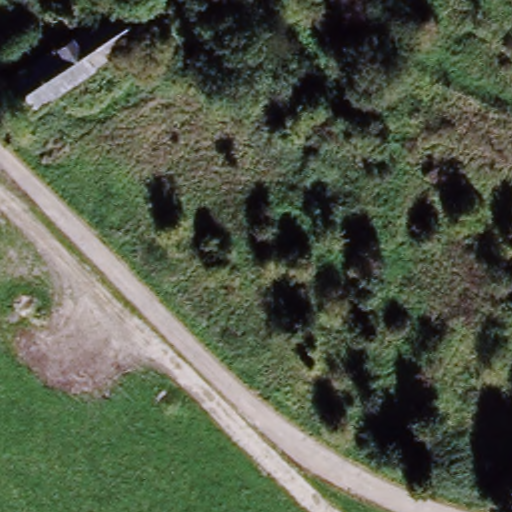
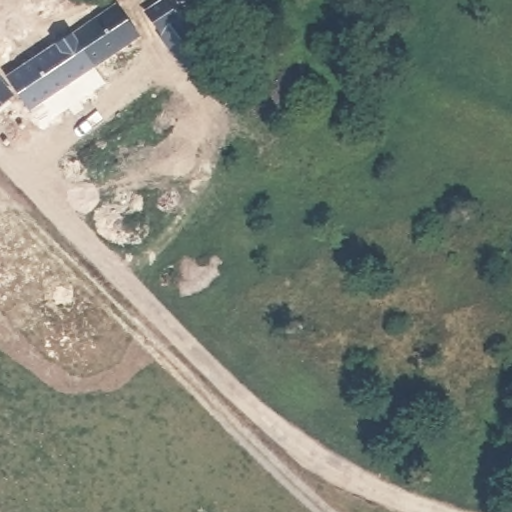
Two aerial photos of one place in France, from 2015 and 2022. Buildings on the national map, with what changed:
unchanged [(140,35),(97,66),(77,41),(121,8),(140,35)]
unchanged [(188,65),(159,27),(179,14),(206,50),(188,65)]
unchanged [(20,84),(77,41),(97,66),(39,110),(20,84)]
unchanged [(8,96),(0,103),(0,86),(8,96)]

